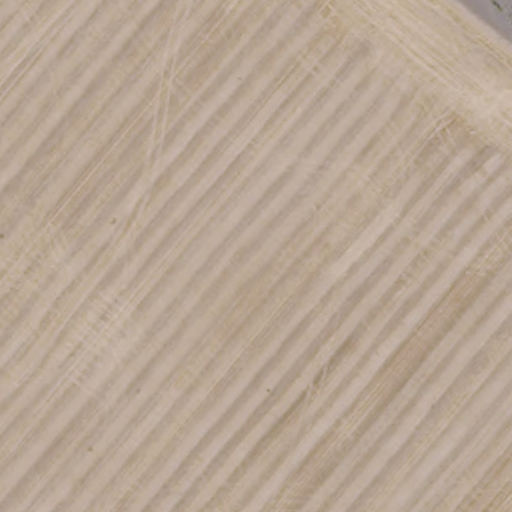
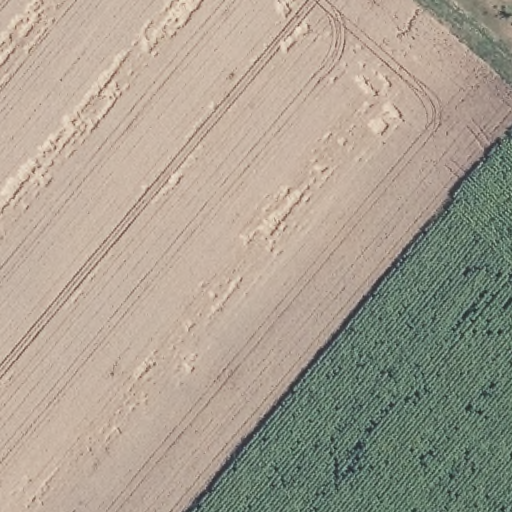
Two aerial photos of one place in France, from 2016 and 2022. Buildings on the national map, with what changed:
[]

